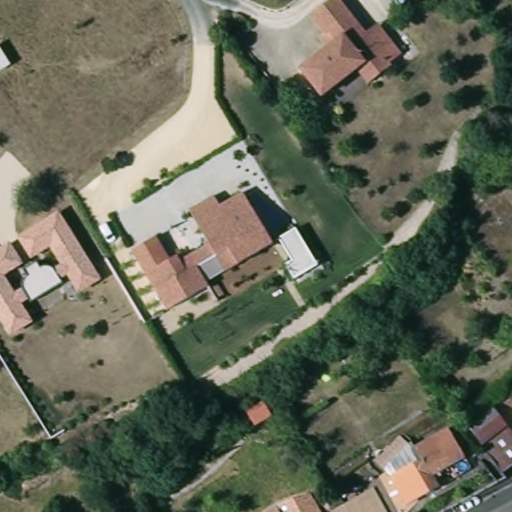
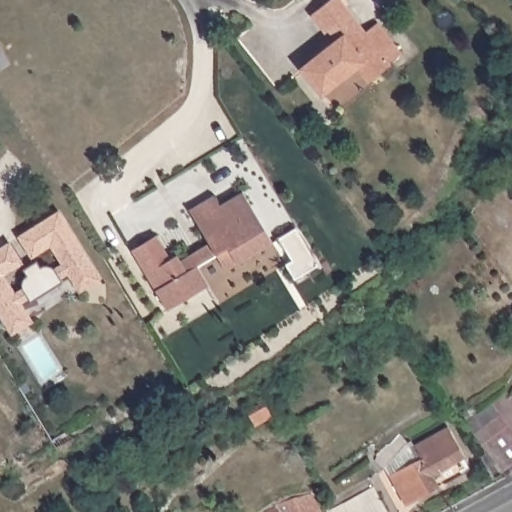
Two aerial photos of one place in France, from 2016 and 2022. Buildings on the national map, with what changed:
unchanged [(301,70),(336,41),(328,31),(325,34),(310,15),(329,0),(340,0),(355,18),(380,49),(357,67),(322,95),(301,70)]
unchanged [(380,49),(355,18),(365,10),(400,52),(389,61),(366,79),(357,67),(380,49)]
unchanged [(206,286),(165,309),(145,272),(131,248),(155,235),(168,259),(176,254),(180,260),(209,243),(204,234),(190,211),(214,198),(219,207),(244,193),(272,245),(225,271),(226,275),(206,286)]
unchanged [(0,317),(0,248),(10,241),(22,263),(5,274),(15,290),(22,287),(22,282),(23,279),(28,276),(25,270),(35,263),(38,268),(45,265),(50,265),(52,267),(60,263),(50,246),(31,257),(19,236),(60,211),(100,278),(78,292),(67,275),(60,280),(61,283),(31,301),(30,299),(22,303),(32,322),(11,335),(0,317)]
unchanged [(298,231),(318,268),(300,279),(279,241),(298,231)]
unchanged [(465,422),(495,401),(509,424),(512,429),(512,464),(501,472),(481,445),(465,422)]
unchanged [(417,445),(451,426),(468,457),(436,474),(442,486),(409,504),(393,474),(424,458),(417,445)]
unchanged [(275,509),(309,492),(320,512),(269,512),(275,509)]

